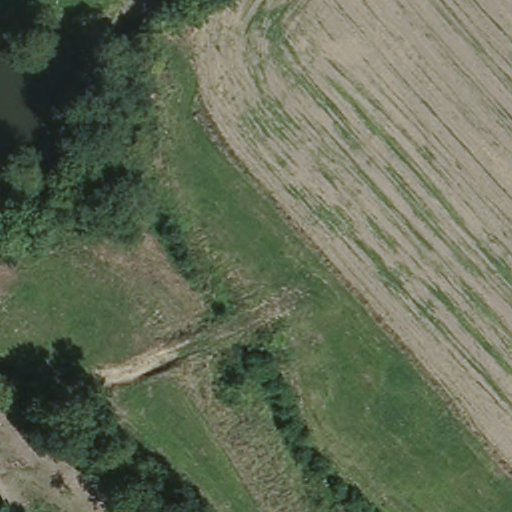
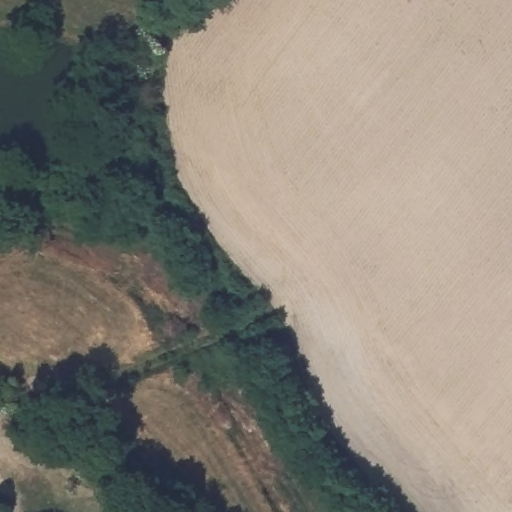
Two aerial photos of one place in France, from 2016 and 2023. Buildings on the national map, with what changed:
[]

